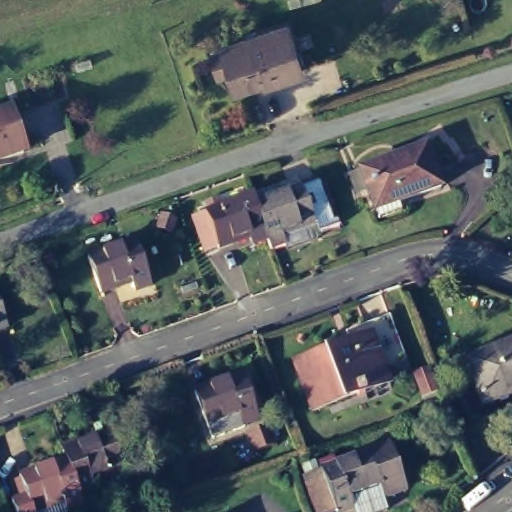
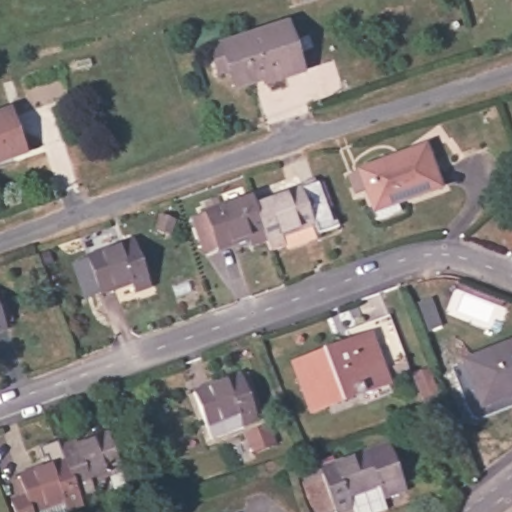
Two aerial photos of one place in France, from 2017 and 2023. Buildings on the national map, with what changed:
unchanged [(207,49),(217,46),(217,45),(283,24),(297,69),(260,80),(259,76),(230,85),(224,67),(213,71),(207,49)]
unchanged [(15,108),(29,149),(0,159),(0,113),(15,108)]
unchanged [(381,162),(382,166),(430,150),(442,187),(400,201),(404,211),(380,218),(369,187),(357,191),(352,174),(364,170),(363,168),(381,162)]
unchanged [(269,239),(257,203),(320,182),(335,228),(320,233),(322,238),(290,248),(289,243),(272,249),(269,239)]
unchanged [(192,213),(205,208),(254,192),(257,203),(269,239),(252,245),(249,234),(217,244),(205,248),(192,213)]
unchanged [(132,288),(130,280),(99,290),(87,255),(132,239),(147,282),(132,288)]
unchanged [(0,336),(0,300),(3,299),(14,326),(6,329),(7,333),(0,336)]
unchanged [(349,348),(344,336),(386,320),(404,366),(380,375),(384,387),(357,397),(340,351),(349,348)]
unchanged [(462,364),(498,351),(500,355),(512,350),(512,390),(475,403),(462,364)]
unchanged [(357,397),(310,415),(292,368),(340,351),(357,397)]
unchanged [(245,428),(244,425),(212,437),(197,395),(244,377),(260,422),(245,428)]
unchanged [(120,489),(114,473),(92,481),(96,489),(82,495),(68,460),(63,447),(73,444),(75,450),(112,435),(125,468),(124,469),(130,485),(120,489)]
unchanged [(305,474),(322,467),(319,460),(333,454),(335,461),(391,440),(407,487),(386,494),(390,506),(373,512),(355,512),(354,507),(339,512),(319,512),(309,484),(305,474)]
unchanged [(65,500),(34,512),(15,512),(12,504),(29,498),(21,479),(68,460),(82,495),(85,504),(69,511),(65,500)]

